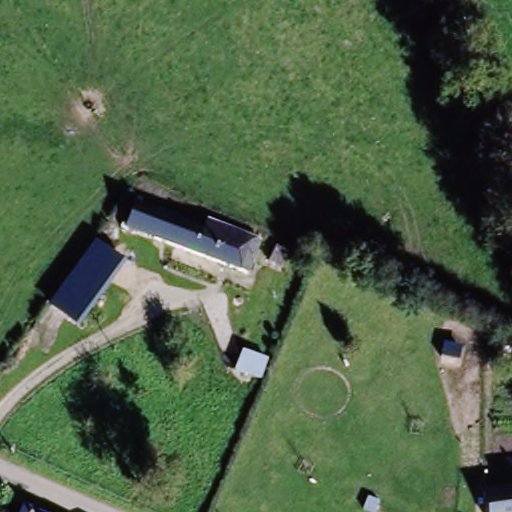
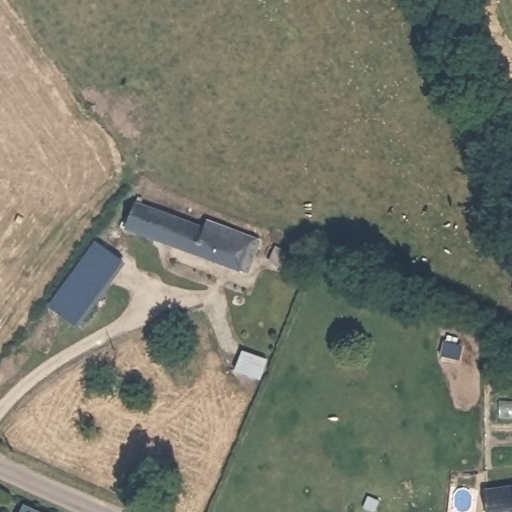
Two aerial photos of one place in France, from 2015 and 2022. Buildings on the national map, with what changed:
unchanged [(260,253),(245,280),(121,217),(135,190),(260,253)]
unchanged [(53,306),(97,245),(120,261),(76,322),(53,306)]
unchanged [(485,512),(482,487),(512,483),(512,512),(485,512)]
unchanged [(0,512),(0,500),(29,512),(0,512)]

